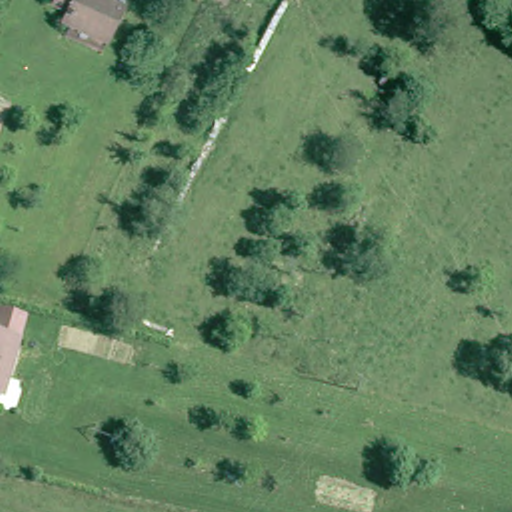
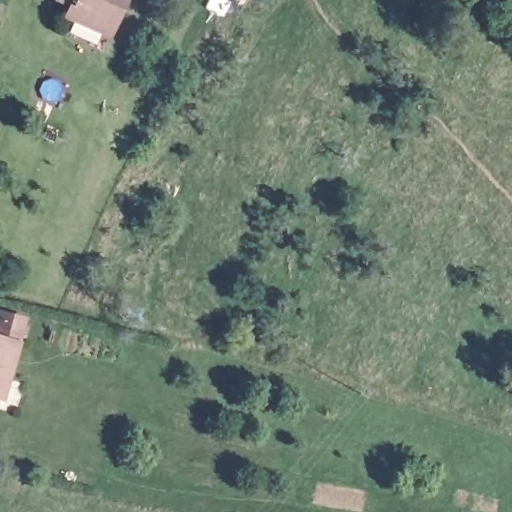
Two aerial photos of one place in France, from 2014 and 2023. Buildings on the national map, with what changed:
unchanged [(73,0),(126,0),(121,12),(113,32),(105,28),(67,12),(73,0)]
unchanged [(0,380),(0,339),(17,344),(7,382),(7,392),(5,401),(0,399),(0,380)]

